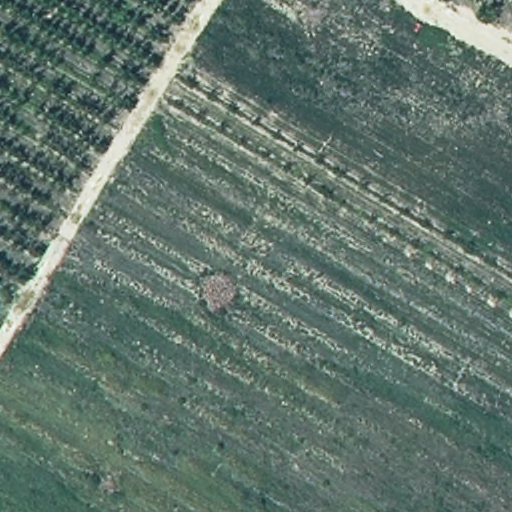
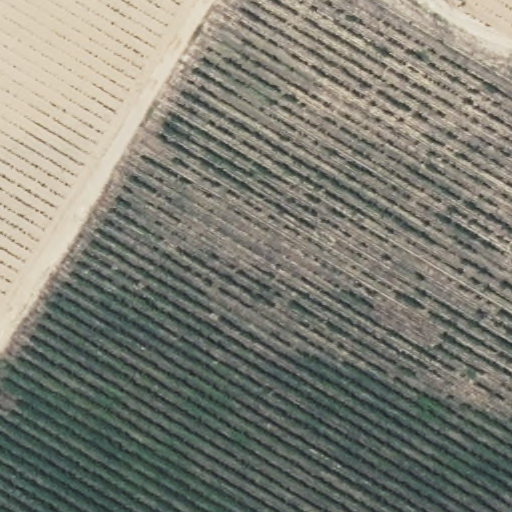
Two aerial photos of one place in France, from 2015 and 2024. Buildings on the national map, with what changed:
[]

